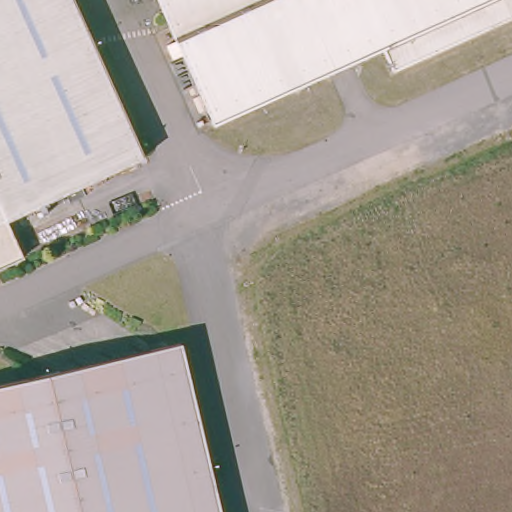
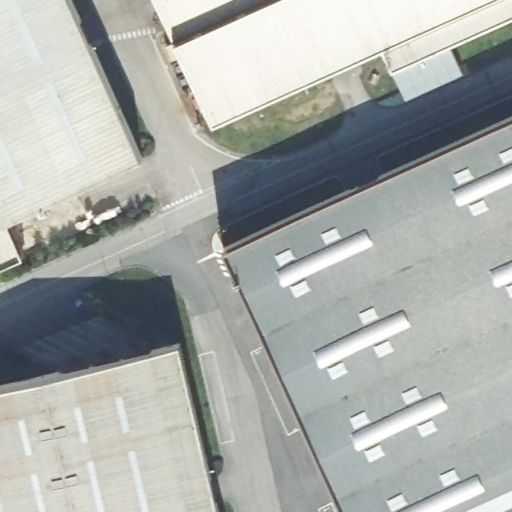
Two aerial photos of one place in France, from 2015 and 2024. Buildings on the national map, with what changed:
unchanged [(143,159),(14,217),(0,223),(0,0),(72,0),(79,15),(143,159)]
unchanged [(391,71),(380,48),(211,123),(156,0),(512,0),(512,16),(391,71)]
new [(225,249),(512,120),(512,512),(343,512),(225,249)]
unchanged [(30,255),(0,269),(0,223),(14,217),(30,255)]
unchanged [(205,464),(217,512),(0,512),(0,381),(175,343),(205,464)]

